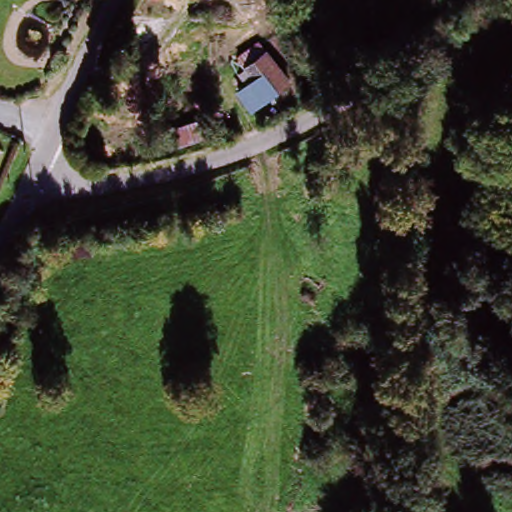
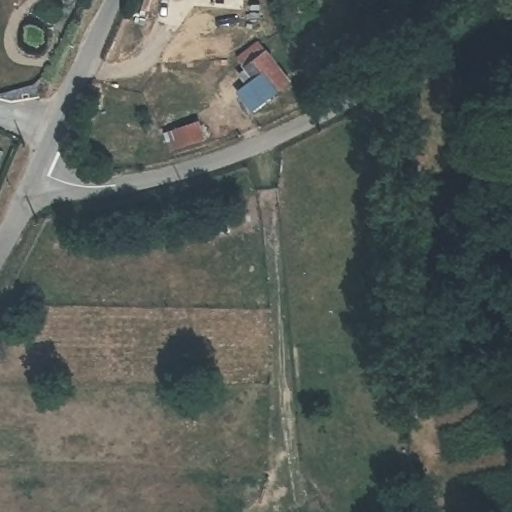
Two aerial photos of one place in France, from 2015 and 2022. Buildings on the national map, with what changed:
unchanged [(291,66),(259,102),(241,86),(252,74),(245,67),(266,45),(291,66)]
unchanged [(210,127),(215,140),(184,150),(179,138),(210,127)]

